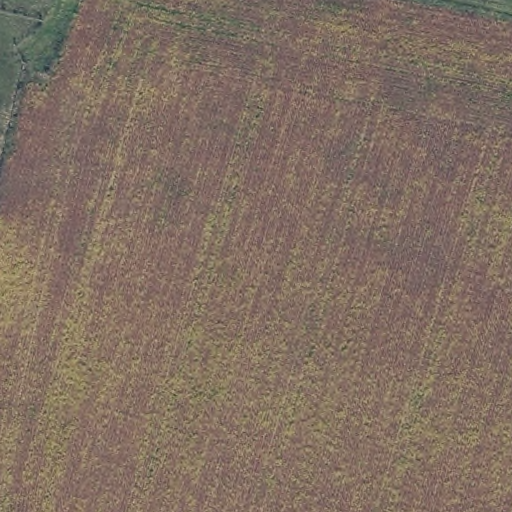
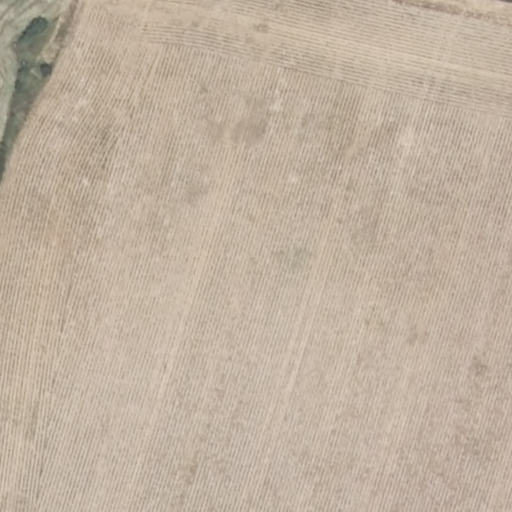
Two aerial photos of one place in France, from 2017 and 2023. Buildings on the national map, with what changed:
[]

